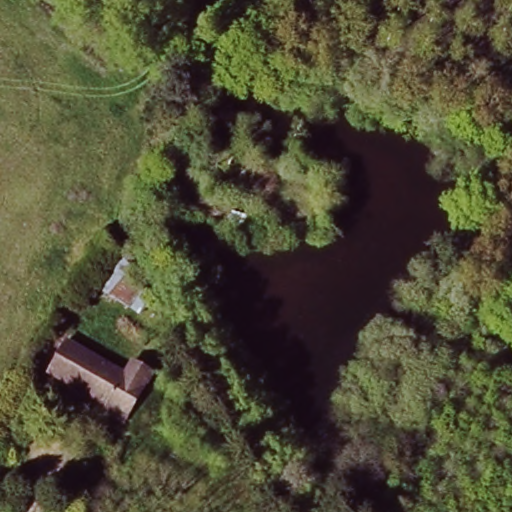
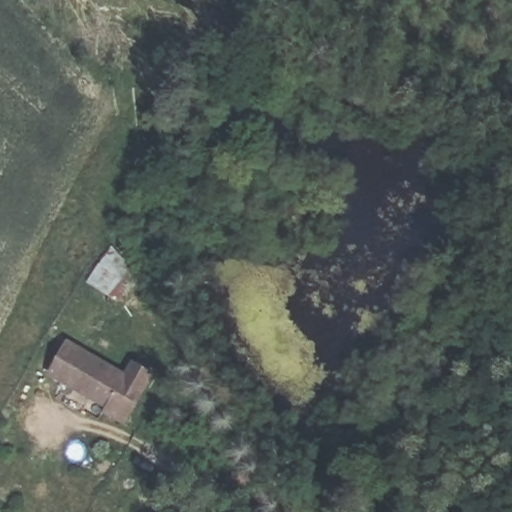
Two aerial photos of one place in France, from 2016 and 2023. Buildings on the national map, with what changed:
unchanged [(108,254),(153,293),(133,316),(88,281),(108,254)]
unchanged [(65,340),(123,374),(131,361),(151,372),(123,422),(103,410),(105,405),(48,372),(65,340)]
unchanged [(170,390),(184,399),(172,419),(158,410),(170,390)]

